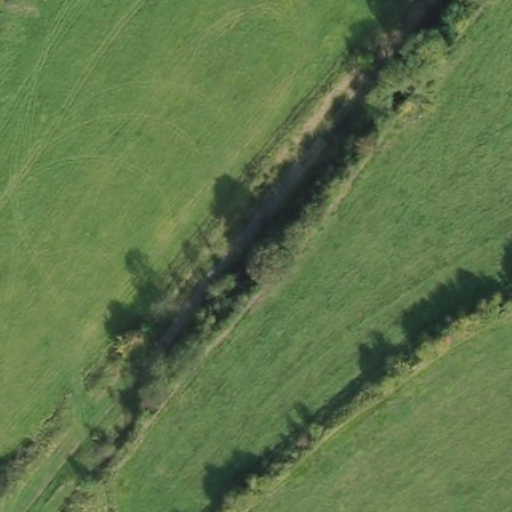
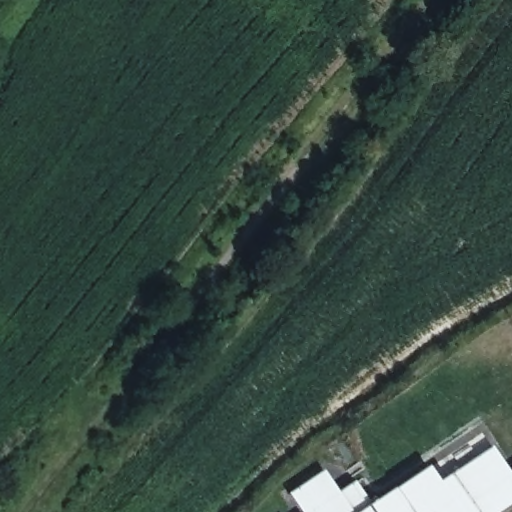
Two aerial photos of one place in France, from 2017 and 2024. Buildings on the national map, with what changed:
new [(289,501),(322,477),(336,494),(351,484),(368,508),(423,469),(436,487),(490,451),(509,479),(512,477),(512,504),(500,512),(297,512),(289,501)]

